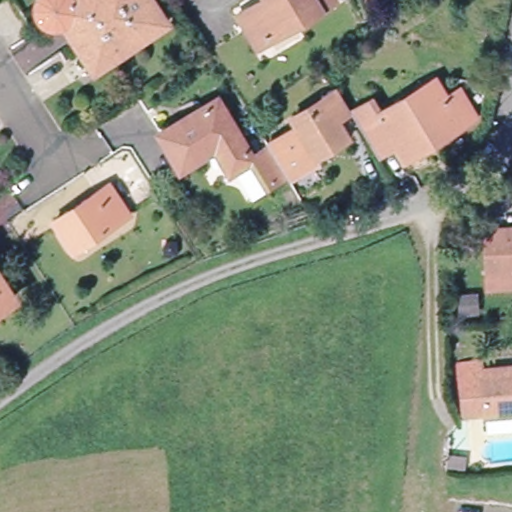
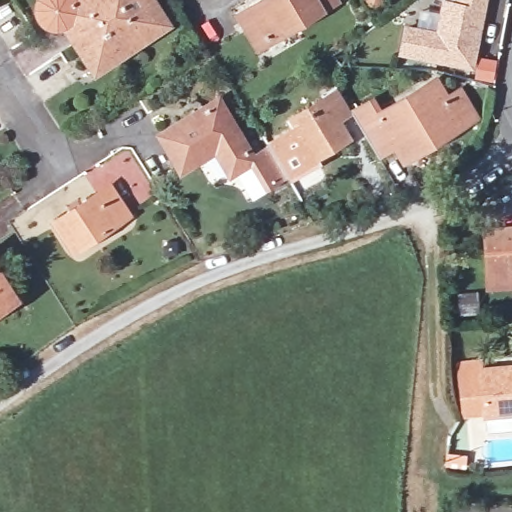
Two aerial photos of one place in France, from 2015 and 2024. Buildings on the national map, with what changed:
unchanged [(69,27),(62,29),(52,27),(45,20),(43,12),(45,5),(49,0),(150,0),(161,17),(170,30),(106,71),(98,76),(69,27)]
unchanged [(236,16),(251,7),(249,3),(255,0),(332,0),(334,3),(272,41),(257,51),(236,16)]
new [(474,70),(397,56),(402,22),(435,29),(440,0),(453,0),(487,0),(474,70)]
unchanged [(400,144),(380,156),(355,114),(375,102),(382,115),(438,82),(448,97),(462,89),(477,116),(463,124),(407,157),(400,144)]
unchanged [(340,121),(350,138),(290,174),(273,148),(303,131),(297,121),(328,102),(327,99),(341,91),(353,112),(340,121)]
unchanged [(273,186),(257,161),(236,175),(221,151),(187,172),(166,138),(222,102),(259,157),(273,148),(290,174),(290,175),(273,186)]
unchanged [(55,224),(109,188),(129,217),(75,254),(55,224)]
unchanged [(512,275),(485,277),(482,236),(512,234),(512,275)]
unchanged [(16,306),(0,317),(0,281),(16,306)]
unchanged [(483,419),(480,419),(479,414),(457,416),(455,365),(476,363),(477,372),(512,370),(512,417),(508,417),(509,438),(484,439),(483,419)]

